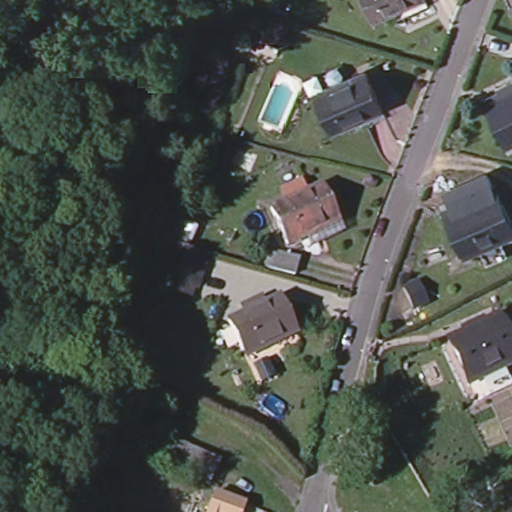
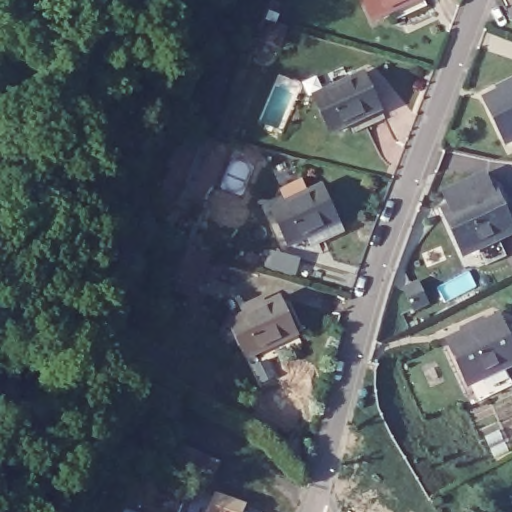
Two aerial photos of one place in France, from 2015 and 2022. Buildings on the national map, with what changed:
unchanged [(270,17),(276,0),(283,0),(285,1),(278,21),(270,42),(262,37),(270,17)]
unchanged [(399,13),(380,22),(369,0),(431,0),(435,7),(405,22),(399,13)]
unchanged [(350,132),(345,122),(326,132),(309,96),(360,72),(377,108),(381,117),(350,132)]
unchanged [(493,98),(504,92),(501,87),(512,81),(512,136),(493,98)]
unchanged [(316,241),(312,232),(292,242),(274,207),(325,181),(342,217),(347,225),(316,241)]
unchanged [(504,246),(483,255),(471,260),(452,219),(458,216),(452,202),(493,184),(500,197),(512,225),(512,242),(504,246)]
unchanged [(174,243),(182,224),(189,226),(182,246),(207,254),(195,287),(192,296),(157,284),(162,274),(174,243)]
unchanged [(270,244),(300,252),(295,268),(266,259),(270,244)]
unchanged [(271,357),(267,348),(247,357),(230,320),(281,296),(299,332),(303,341),(271,357)]
unchanged [(455,338),(464,334),(462,328),(480,318),(483,326),(501,317),(512,342),(512,361),(505,365),(507,372),(485,382),(482,375),(472,380),(455,338)]
unchanged [(176,436),(223,459),(212,485),(164,461),(176,436)]
unchanged [(213,502),(223,507),(237,512),(210,512),(213,502)]

